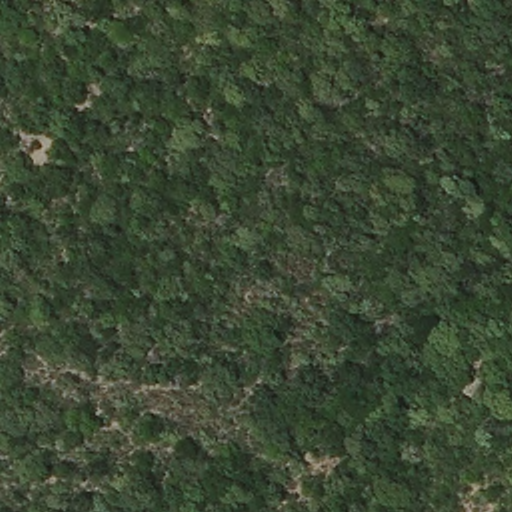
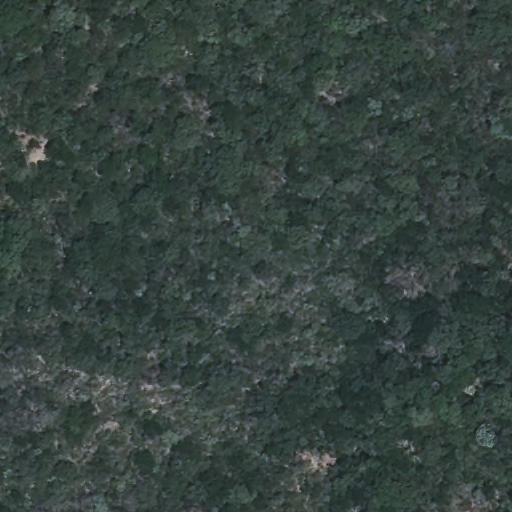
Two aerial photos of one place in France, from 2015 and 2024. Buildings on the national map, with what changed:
unchanged [(490,393),(470,383),(477,366),(500,377),(490,393)]

